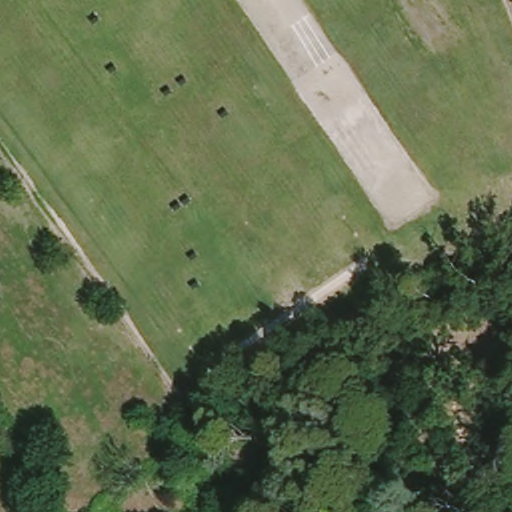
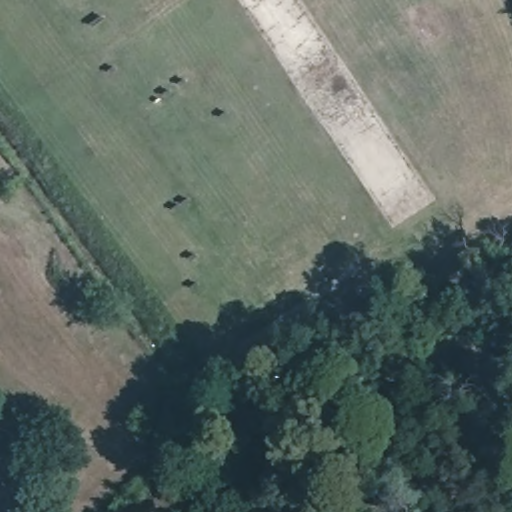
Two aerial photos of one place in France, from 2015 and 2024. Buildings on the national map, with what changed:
[]

